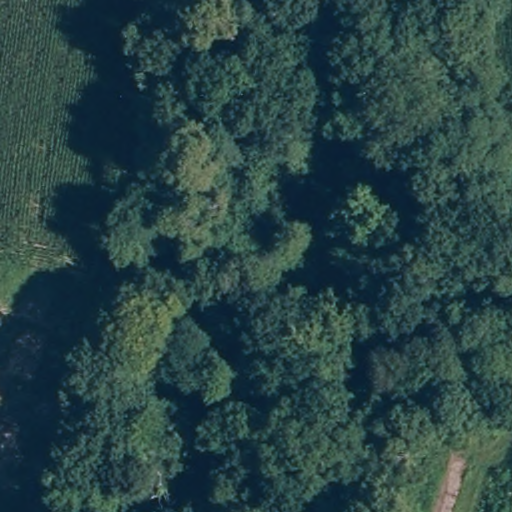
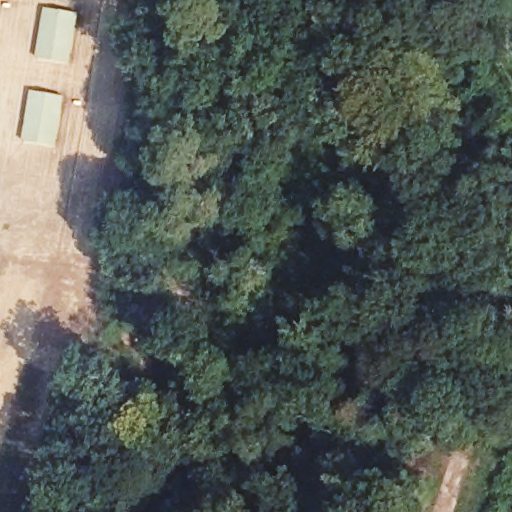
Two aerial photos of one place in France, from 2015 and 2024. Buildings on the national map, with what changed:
new [(80,13),(71,64),(37,60),(44,8),(80,13)]
new [(65,96),(57,148),(23,143),(31,90),(65,96)]

